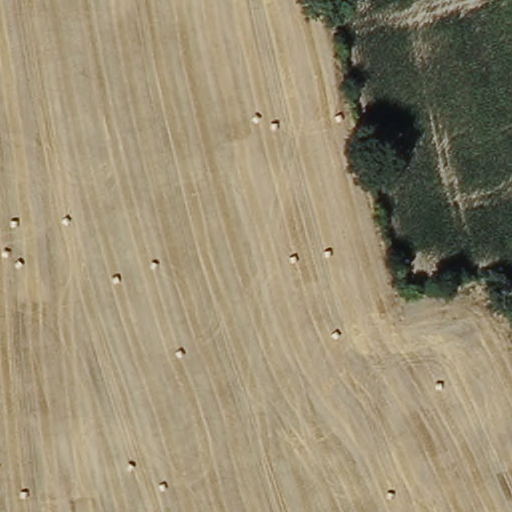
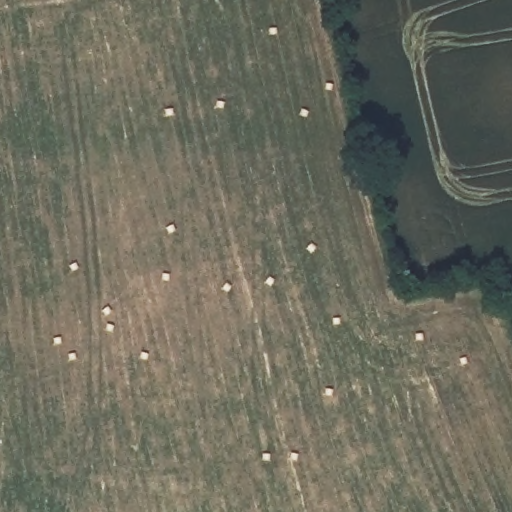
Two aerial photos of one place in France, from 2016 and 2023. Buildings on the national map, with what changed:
[]

